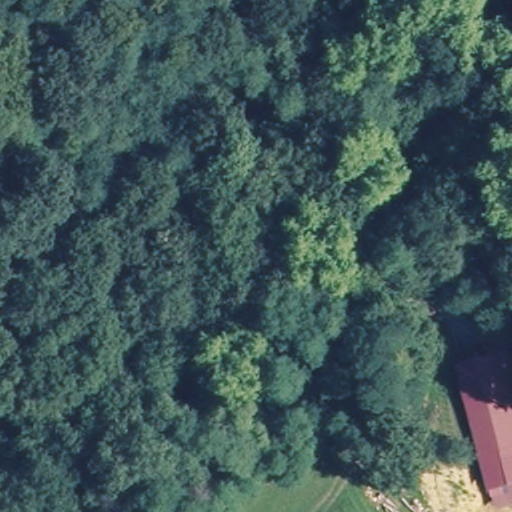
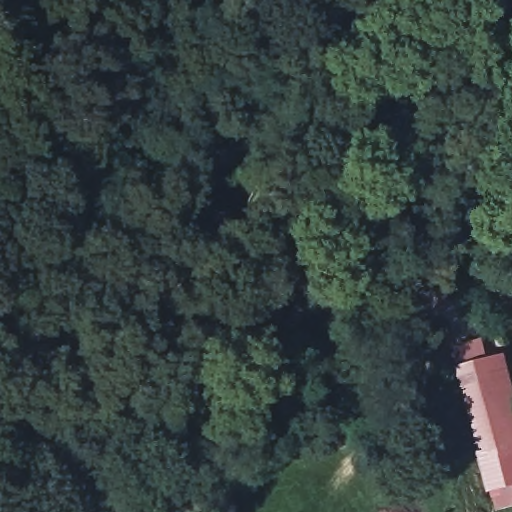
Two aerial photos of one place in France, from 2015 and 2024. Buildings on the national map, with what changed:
unchanged [(512,378),(512,507),(492,512),(485,491),(481,493),(449,370),(506,355),(512,378)]

